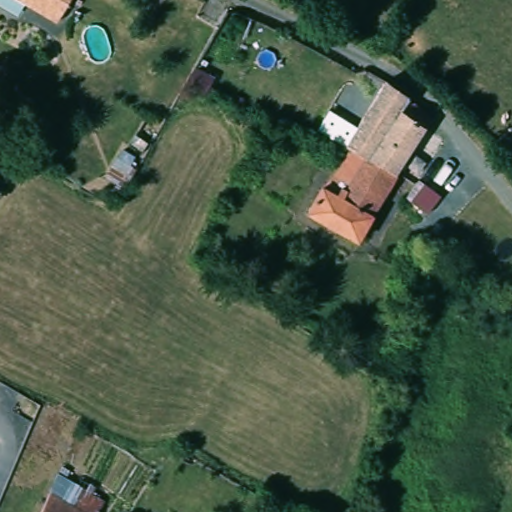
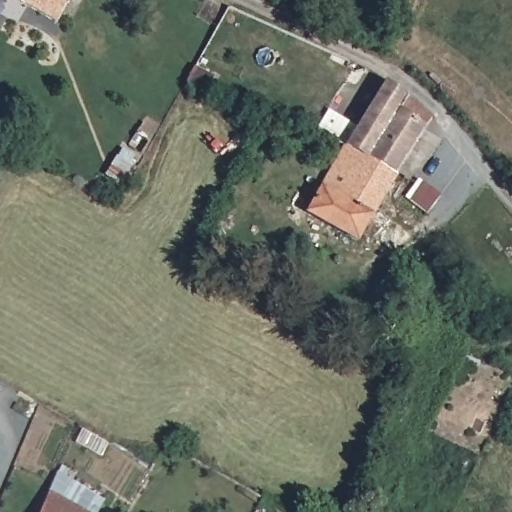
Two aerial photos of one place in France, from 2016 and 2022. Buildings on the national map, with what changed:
unchanged [(60,21),(26,0),(73,0),(60,21)]
unchanged [(361,120),(389,81),(435,118),(400,171),(353,151),(346,148),(364,122),(361,120)]
unchanged [(310,213),(325,187),(340,171),(353,151),(400,171),(402,173),(361,239),(310,213)]
unchanged [(109,499),(102,512),(40,512),(61,464),(89,475),(90,485),(109,499)]

